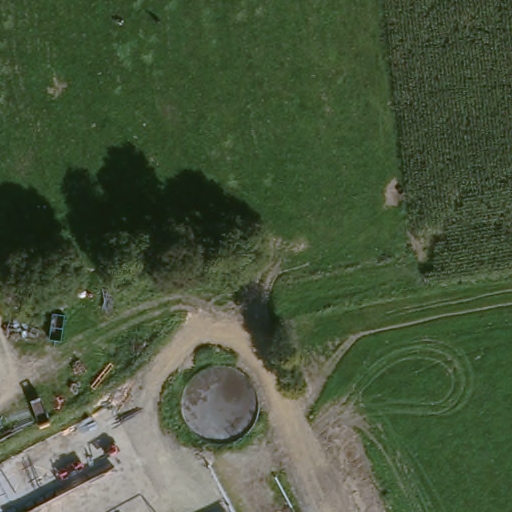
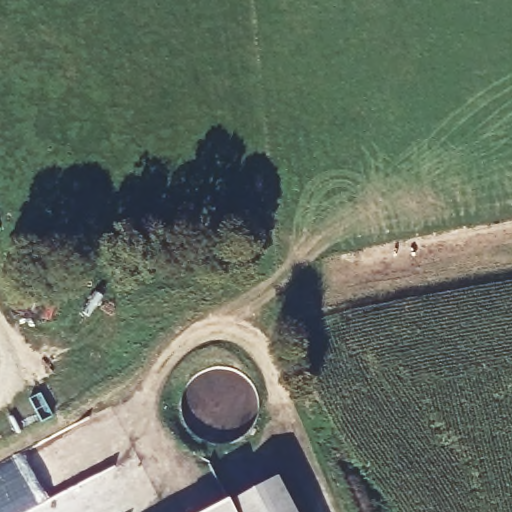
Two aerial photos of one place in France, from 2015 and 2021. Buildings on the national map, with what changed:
new [(230,505),(278,478),(296,512),(210,512),(228,502),(230,505)]

